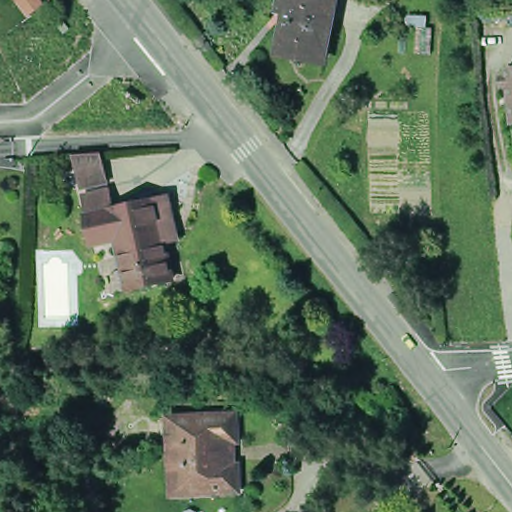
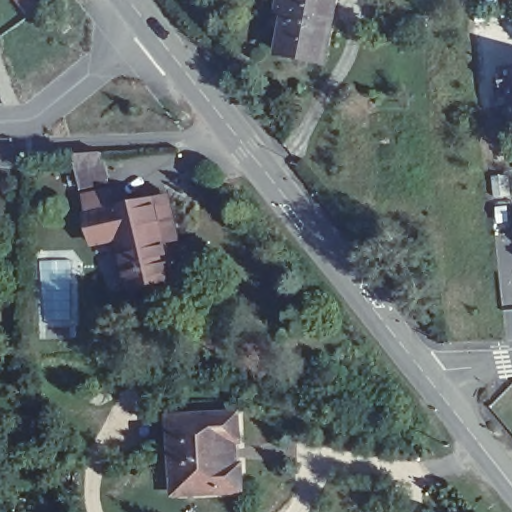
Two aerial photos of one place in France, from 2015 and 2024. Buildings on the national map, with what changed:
unchanged [(39,0),(42,5),(31,14),(20,0),(39,0)]
unchanged [(338,12),(286,1),(286,0),(341,0),(340,4),(338,12)]
unchanged [(282,60),(289,26),(281,24),(286,1),(338,12),(325,77),(301,72),(280,68),(282,60)]
unchanged [(107,195),(80,200),(72,166),(100,165),(107,195)]
unchanged [(92,254),(85,225),(81,207),(107,201),(112,219),(166,207),(173,236),(160,239),(171,288),(127,300),(115,249),(92,254)]
unchanged [(171,423),(177,423),(237,420),(240,445),(232,445),(233,456),(235,471),(241,470),(244,496),(177,499),(172,442),(171,423)]

